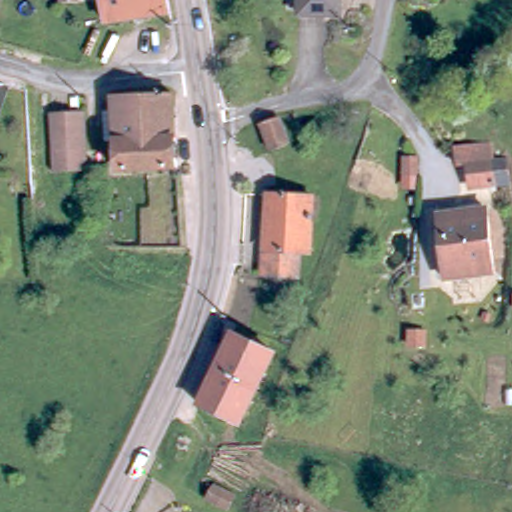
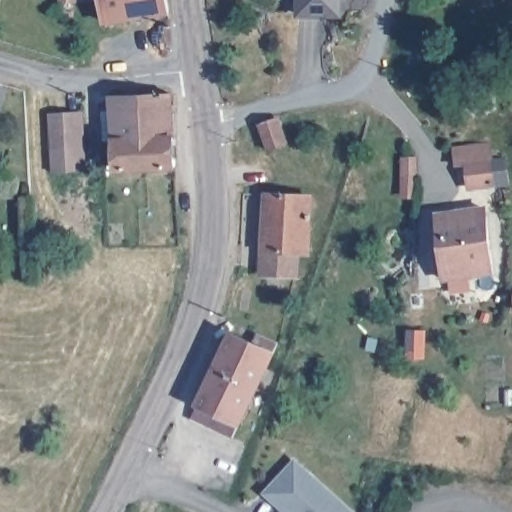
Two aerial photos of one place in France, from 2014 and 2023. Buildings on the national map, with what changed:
unchanged [(72,0),(58,2),(58,0),(71,0),(72,0)]
unchanged [(172,8),(107,19),(104,0),(171,0),(172,8)]
unchanged [(339,10),(300,9),(299,0),(339,0),(339,10)]
unchanged [(177,165),(115,168),(109,98),(172,94),(177,165)]
unchanged [(50,108),(79,106),(82,163),(62,164),(53,165),(50,108)]
unchanged [(290,137),(272,141),(264,113),(284,109),(290,137)]
unchanged [(420,153),(420,169),(409,169),(409,152),(420,153)]
unchanged [(498,178),(473,179),(473,154),(493,153),(498,158),(498,178)]
unchanged [(311,196),(308,253),(297,252),(296,277),(263,274),(266,195),(311,196)]
unchanged [(488,202),(489,252),(499,252),(499,267),(440,269),(440,203),(488,202)]
unchanged [(269,348),(239,422),(198,405),(227,332),(269,348)]
new [(284,512),(264,492),(296,458),(355,512),(284,512)]

